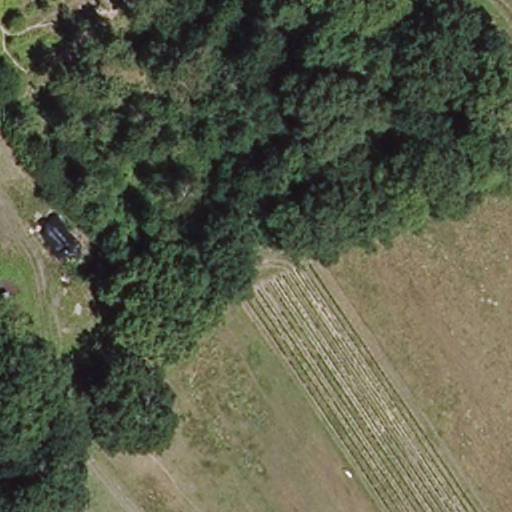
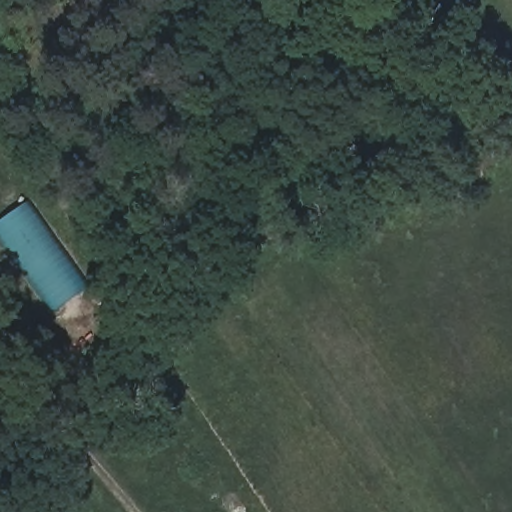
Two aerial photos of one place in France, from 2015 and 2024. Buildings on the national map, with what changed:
new [(0,240),(0,221),(26,202),(87,287),(55,312),(0,240)]

